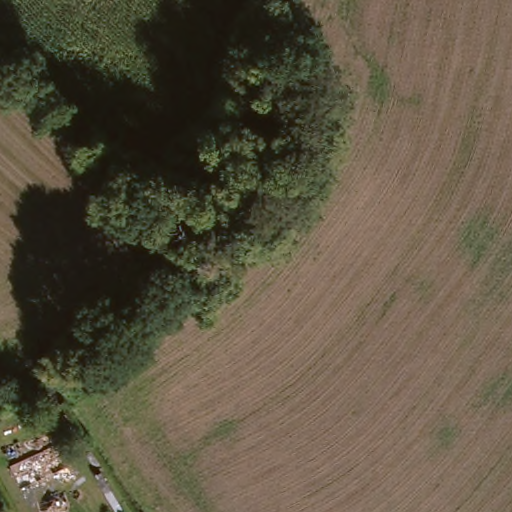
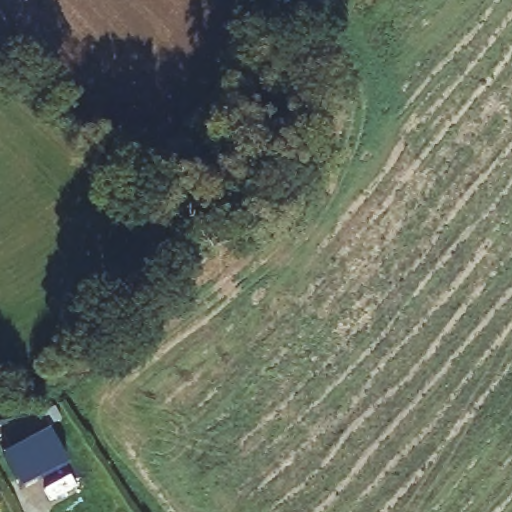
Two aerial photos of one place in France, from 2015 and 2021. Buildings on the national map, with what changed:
new [(68,465),(21,489),(3,455),(48,431),(68,465)]

